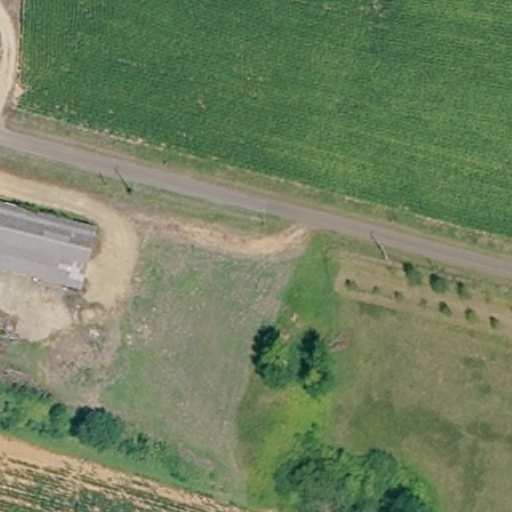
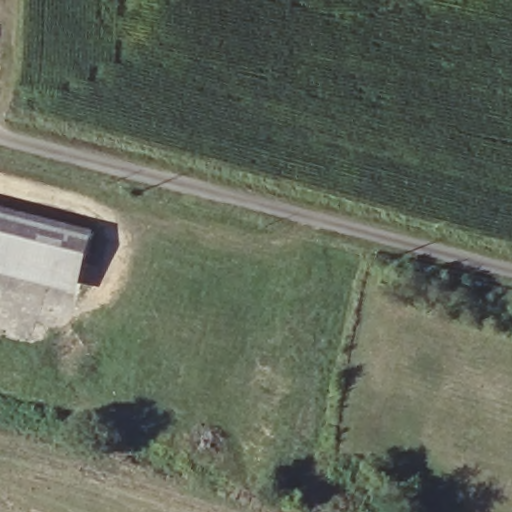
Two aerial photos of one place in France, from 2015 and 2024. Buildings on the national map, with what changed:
unchanged [(74,283),(0,266),(0,212),(86,233),(74,283)]

